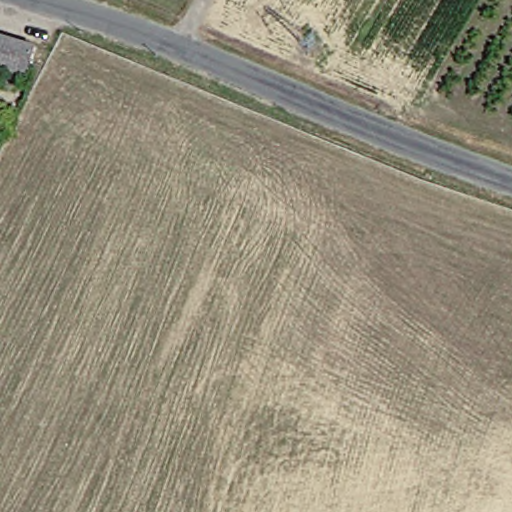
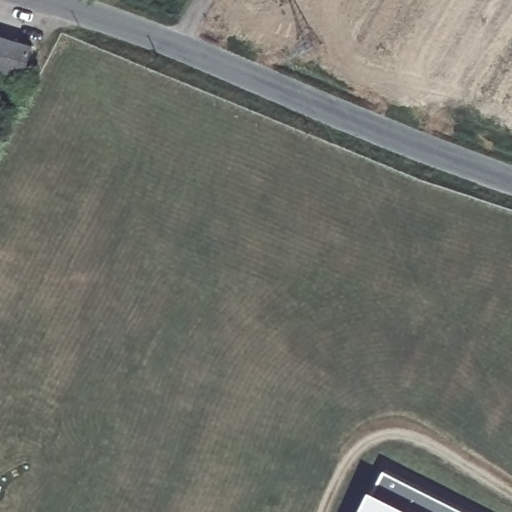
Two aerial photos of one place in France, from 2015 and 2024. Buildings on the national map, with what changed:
unchanged [(0,69),(0,37),(26,45),(18,75),(0,69)]
new [(367,500),(361,498),(368,485),(370,487),(380,466),(470,512),(360,512),(367,500)]

